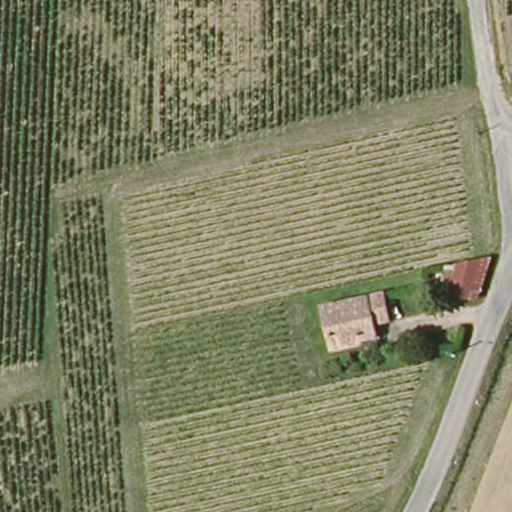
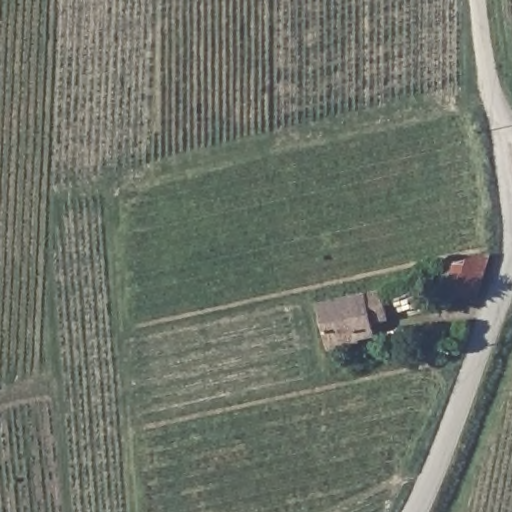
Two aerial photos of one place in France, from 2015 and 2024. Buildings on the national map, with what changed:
unchanged [(486,279),(481,299),(450,297),(450,264),(488,257),(486,279)]
unchanged [(379,294),(384,318),(372,321),(374,331),(329,342),(320,305),(379,294)]

